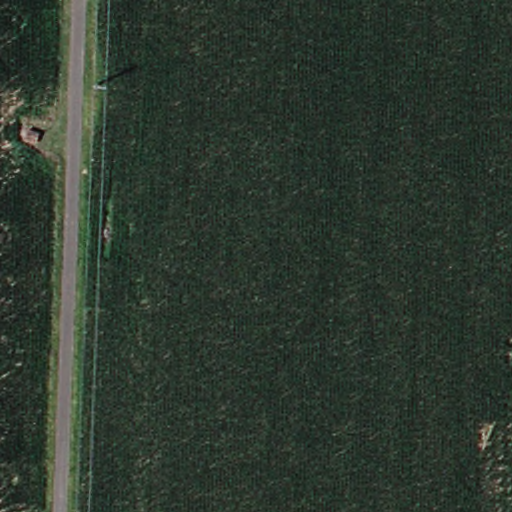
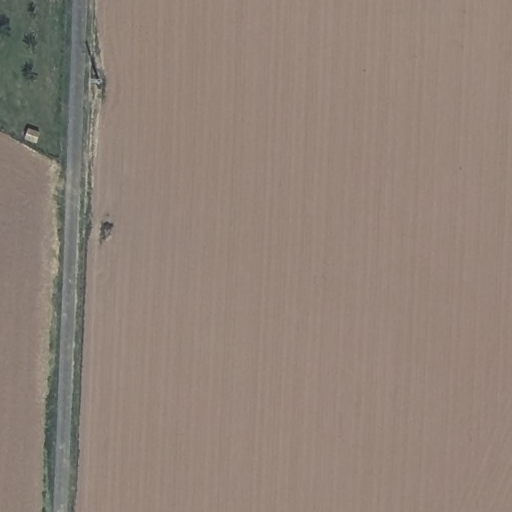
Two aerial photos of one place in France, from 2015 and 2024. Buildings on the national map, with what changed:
unchanged [(31,132),(24,142),(11,134),(17,124),(31,132)]

